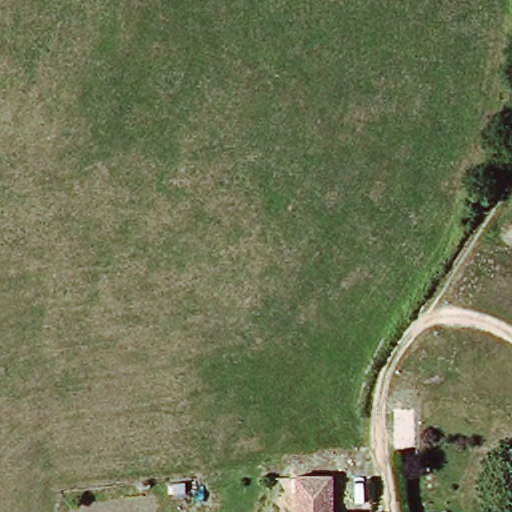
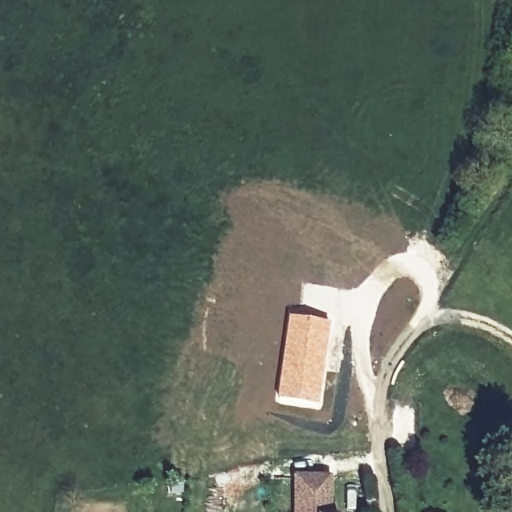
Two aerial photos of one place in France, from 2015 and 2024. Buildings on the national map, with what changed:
new [(289,315),(330,322),(320,405),(277,398),(289,315)]
unchanged [(304,481),(334,481),(334,512),(304,512),(304,481)]

